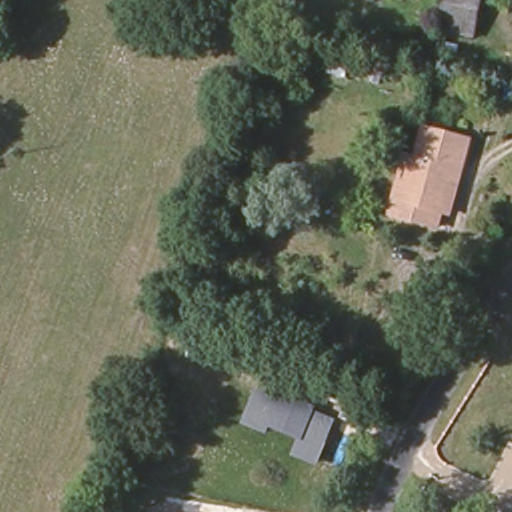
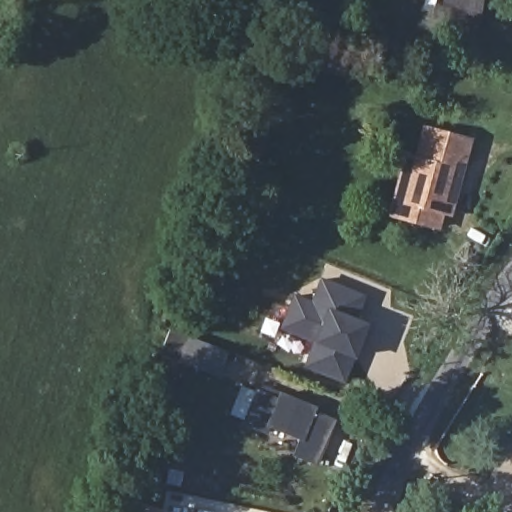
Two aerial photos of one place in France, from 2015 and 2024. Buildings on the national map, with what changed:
unchanged [(445,27),(450,0),(486,0),(480,34),(445,27)]
unchanged [(512,8),(512,15),(511,15),(512,8)]
unchanged [(446,216),(442,232),(397,219),(401,204),(412,162),(422,164),(430,134),(475,145),(466,176),(455,217),(446,216)]
new [(303,367),(313,341),(280,328),(293,293),(311,300),(321,278),(366,295),(357,317),(366,321),(342,382),(303,367)]
new [(188,339),(226,353),(217,377),(179,363),(188,339)]
unchanged [(317,466),(291,456),(297,440),(269,428),(266,433),(242,423),(256,388),(278,398),(281,392),(316,406),(313,411),(336,419),(317,466)]
new [(163,512),(128,512),(132,500),(164,510),(163,512)]

